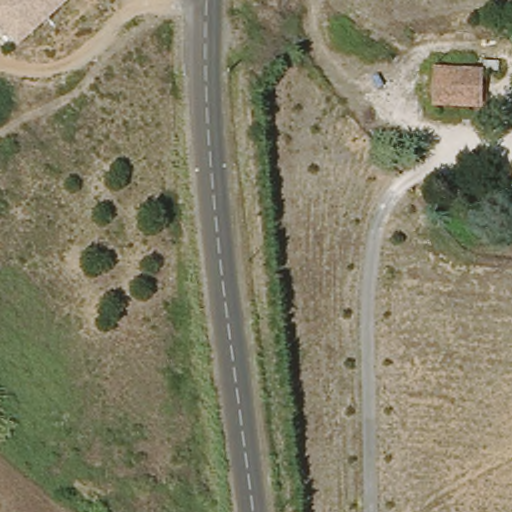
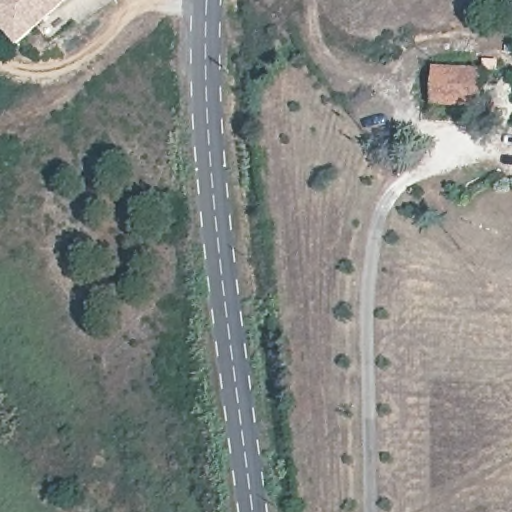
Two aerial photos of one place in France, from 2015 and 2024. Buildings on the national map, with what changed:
unchanged [(0,24),(0,0),(71,0),(20,45),(0,24)]
unchanged [(479,105),(428,103),(431,66),(482,69),(479,105)]

